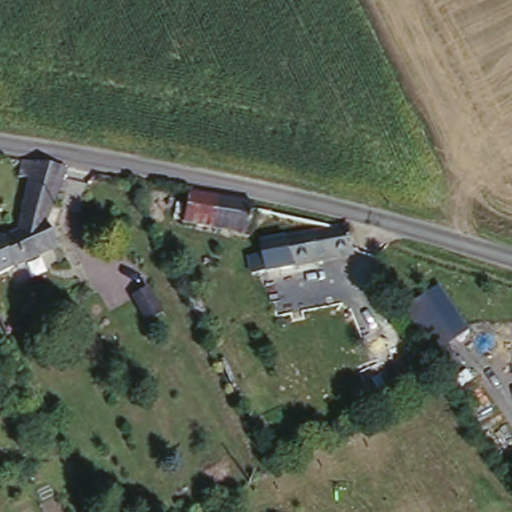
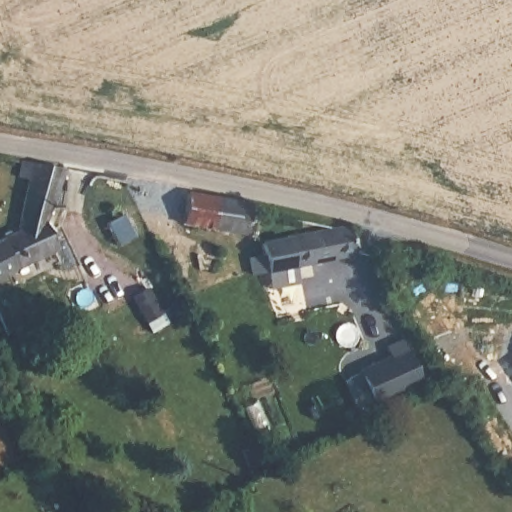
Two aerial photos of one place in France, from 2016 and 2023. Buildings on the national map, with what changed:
unchanged [(58,247),(0,273),(0,239),(21,229),(26,181),(15,177),(19,161),(63,172),(46,212),(58,247)]
unchanged [(256,204),(248,237),(183,223),(190,188),(256,204)]
unchanged [(312,228),(315,234),(347,223),(355,250),(270,269),(260,236),(312,228)]
unchanged [(469,329),(432,352),(405,310),(440,284),(469,329)]
demolished [(147,300),(164,292),(177,315),(160,324),(147,300)]
new [(350,382),(362,376),(359,369),(390,355),(386,346),(402,339),(422,383),(381,401),(378,394),(359,403),(350,382)]

